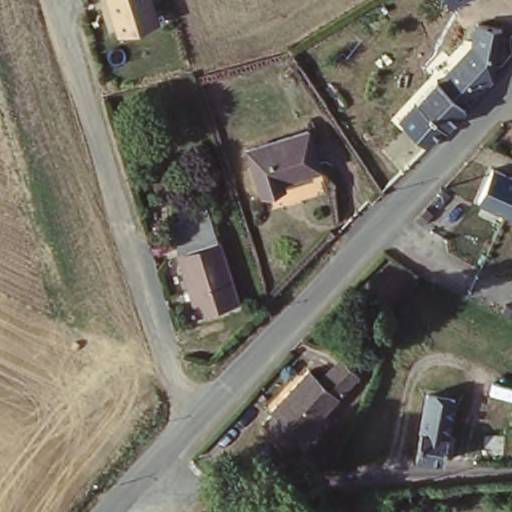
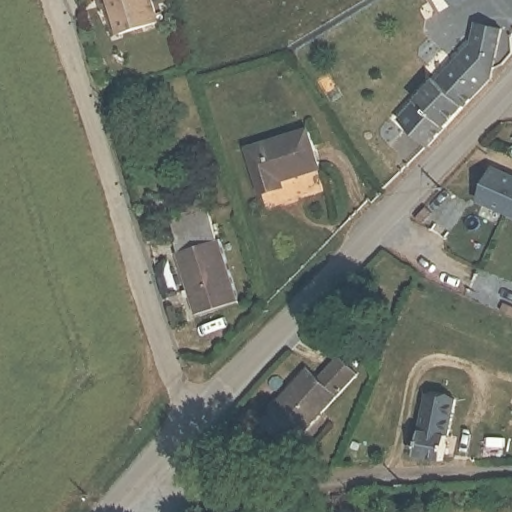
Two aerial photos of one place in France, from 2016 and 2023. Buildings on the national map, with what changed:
unchanged [(151,0),(158,22),(117,36),(105,0),(151,0)]
unchanged [(464,0),(451,8),(446,0),(464,0)]
unchanged [(466,57),(477,48),(477,27),(499,30),(499,43),(498,73),(429,147),(402,122),(466,57)]
unchanged [(323,167),(284,178),(286,189),(264,195),(249,150),(312,129),(323,167)]
unchanged [(490,152),(512,160),(512,198),(476,183),(490,152)]
unchanged [(180,262),(186,260),(179,240),(184,239),(180,227),(214,217),(242,312),(200,325),(180,262)]
unchanged [(303,433),(293,445),(267,420),(277,410),(274,407),(311,367),(322,375),(342,353),(361,372),(305,435),(303,433)]
unchanged [(457,393),(443,461),(413,452),(427,387),(457,393)]

